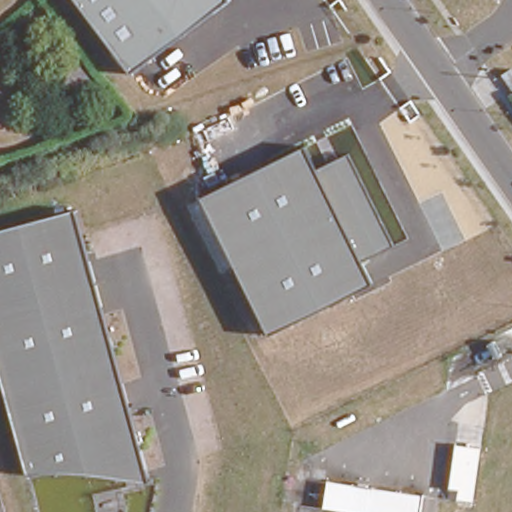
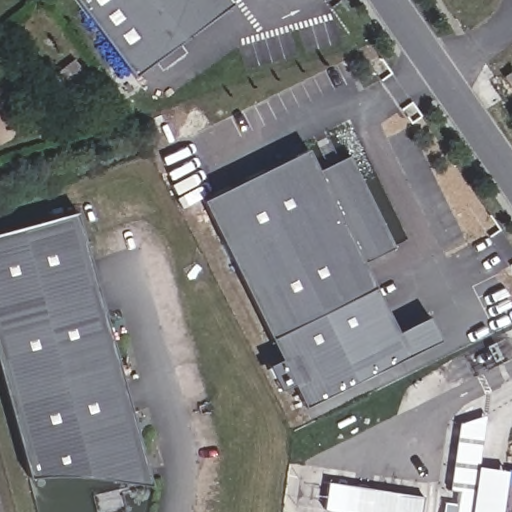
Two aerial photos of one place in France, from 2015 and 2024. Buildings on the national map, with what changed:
unchanged [(77,0),(229,0),(132,74),(77,0)]
unchanged [(76,98),(58,76),(79,58),(97,80),(76,98)]
unchanged [(362,263),(373,284),(270,335),(202,198),(306,146),(316,170),(348,154),(393,245),(362,263)]
unchanged [(30,476),(0,369),(0,233),(77,211),(151,482),(88,474),(30,476)]
new [(396,329),(427,315),(437,337),(302,403),(292,381),(278,388),(267,363),(280,357),(270,335),(373,284),(396,329)]
new [(484,414),(477,465),(506,469),(500,512),(456,512),(459,490),(448,489),(458,423),(484,414)]
unchanged [(420,512),(348,512),(324,509),(328,482),(422,495),(420,512)]

